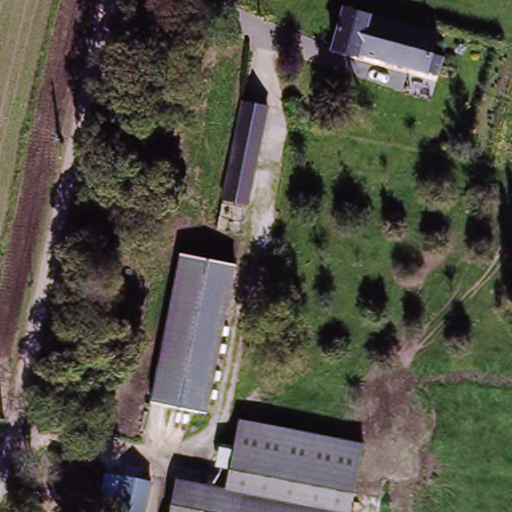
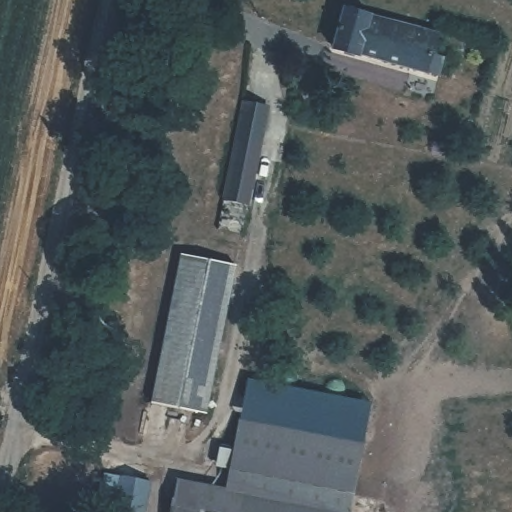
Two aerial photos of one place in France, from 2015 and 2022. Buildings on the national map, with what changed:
unchanged [(340,7),(435,31),(430,53),(443,56),(438,75),(425,72),(329,47),(340,7)]
unchanged [(264,115),(246,213),(221,208),(239,110),(264,115)]
unchanged [(511,139),(512,135),(512,139),(511,139)]
unchanged [(182,241),(242,254),(212,401),(154,391),(182,241)]
new [(240,427),(248,380),(371,403),(363,451),(240,427)]
unchanged [(227,497),(240,427),(363,451),(352,512),(174,512),(179,488),(227,497)]
unchanged [(107,498),(112,468),(157,476),(151,512),(119,512),(121,501),(107,498)]

